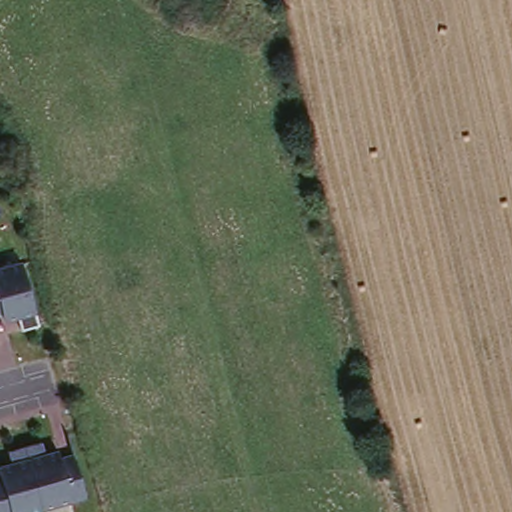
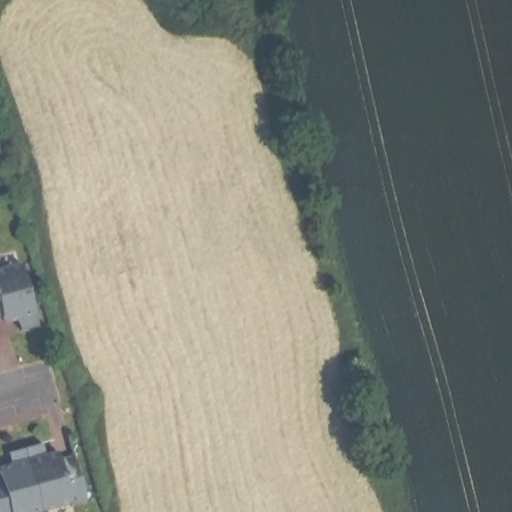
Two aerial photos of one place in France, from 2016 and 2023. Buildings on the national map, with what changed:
unchanged [(26,261),(39,313),(7,323),(4,313),(0,315),(0,267),(26,261)]
unchanged [(2,481),(0,474),(0,467),(9,465),(7,458),(50,447),(52,453),(74,450),(87,497),(33,512),(0,512),(0,511),(0,482),(2,481)]

